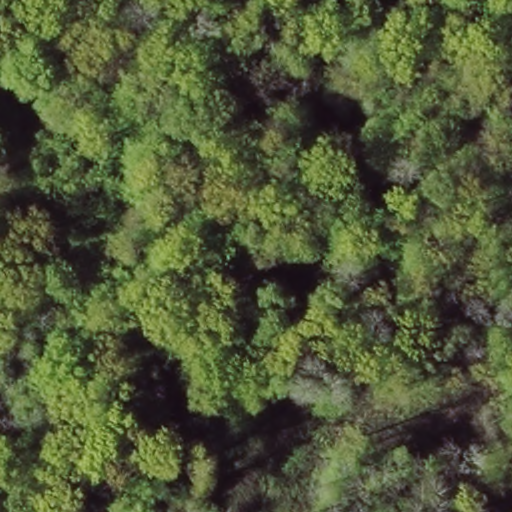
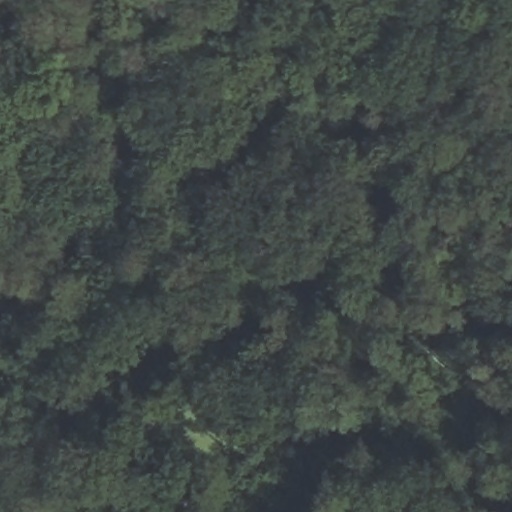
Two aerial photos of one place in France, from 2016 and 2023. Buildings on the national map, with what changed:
unchanged [(168,289),(169,311),(135,310),(137,287),(168,289)]

